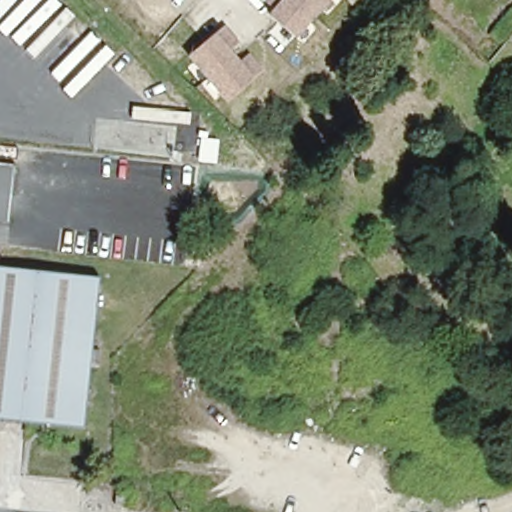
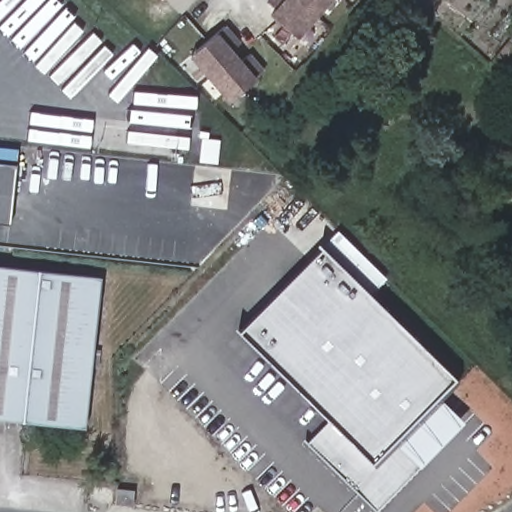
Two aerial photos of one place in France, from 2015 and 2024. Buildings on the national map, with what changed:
unchanged [(272,12),(283,0),(333,0),(300,39),(272,12)]
unchanged [(241,43),(233,49),(243,62),(250,55),(266,72),(230,102),(191,59),(228,28),(241,43)]
unchanged [(12,225),(0,223),(0,163),(18,165),(12,225)]
new [(455,380),(398,437),(423,462),(376,512),(307,443),(329,422),(238,331),(320,248),(455,380)]
unchanged [(93,368),(87,428),(0,419),(0,266),(103,277),(95,350),(109,352),(109,369),(93,368)]
unchanged [(107,483),(124,485),(122,502),(106,501),(107,483)]

